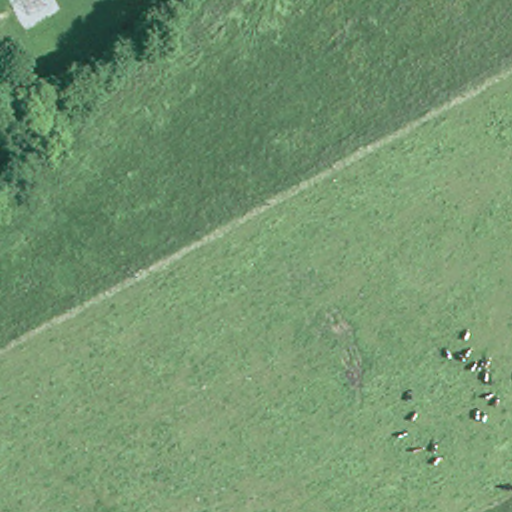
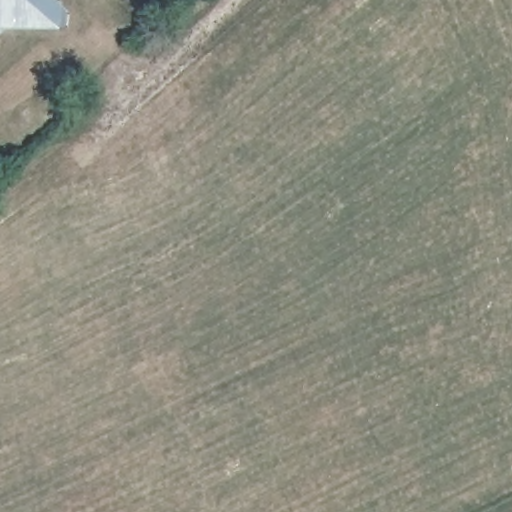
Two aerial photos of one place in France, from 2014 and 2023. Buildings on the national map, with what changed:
new [(57,30),(0,30),(0,0),(57,0),(65,7),(57,30)]

